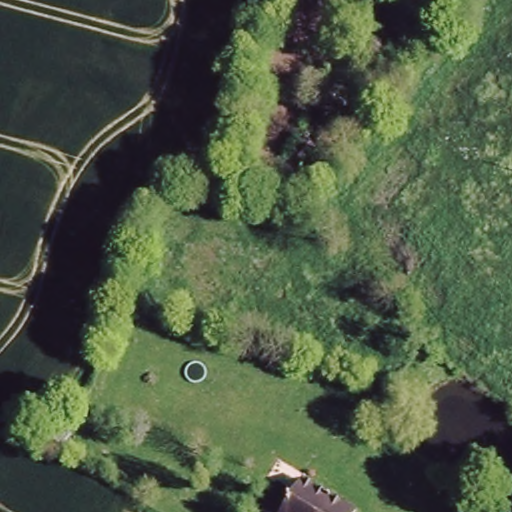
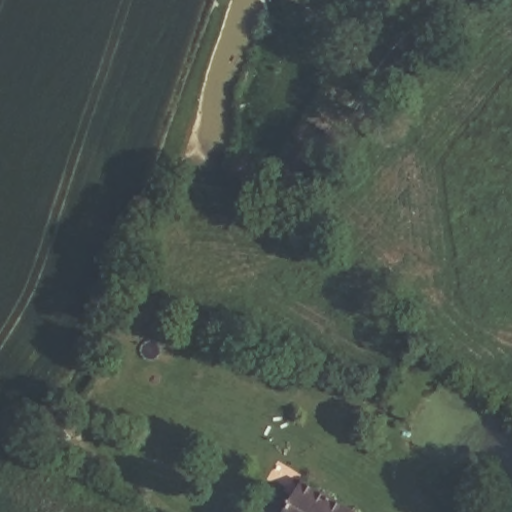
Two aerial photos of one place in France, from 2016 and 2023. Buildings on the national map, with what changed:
unchanged [(276,485),(292,490),(300,479),(349,512),(263,512),(260,508),(276,485)]

